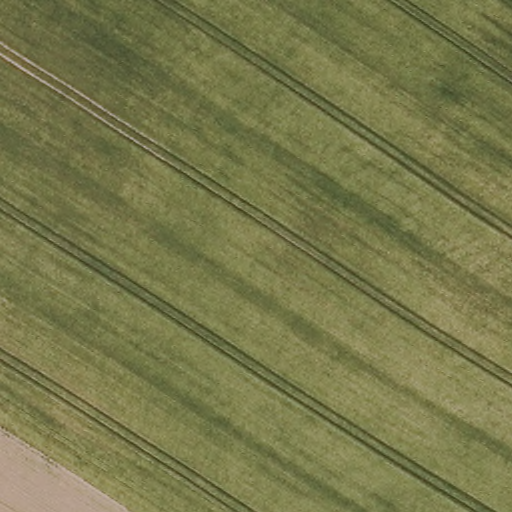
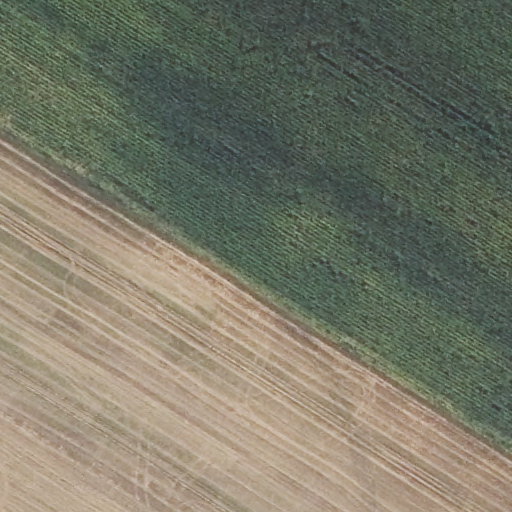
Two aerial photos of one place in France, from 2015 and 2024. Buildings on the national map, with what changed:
[]

